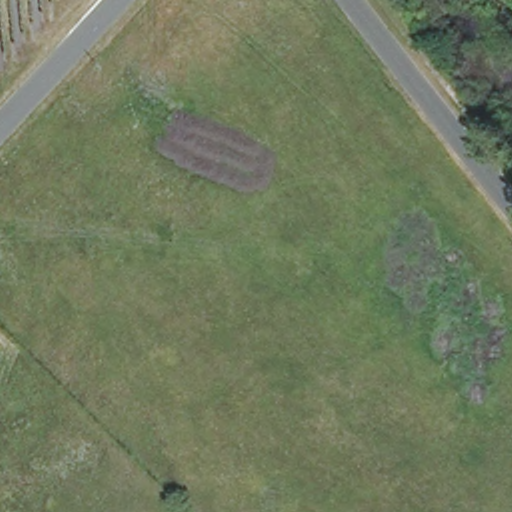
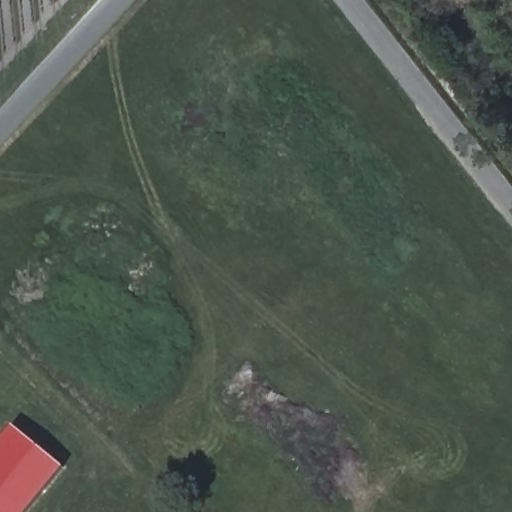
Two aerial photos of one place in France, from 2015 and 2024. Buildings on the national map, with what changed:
new [(11,429),(26,436),(65,468),(29,512),(0,512),(0,443),(11,429)]

